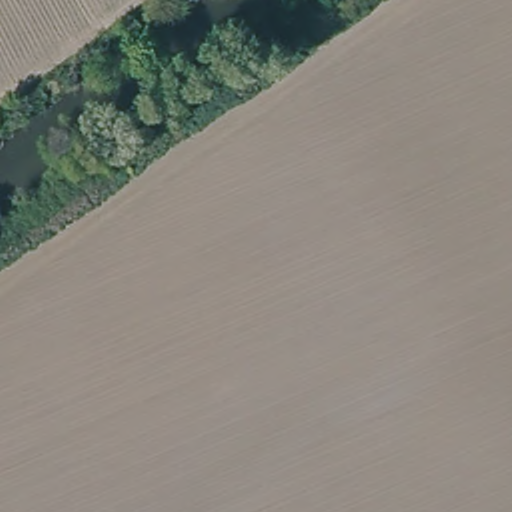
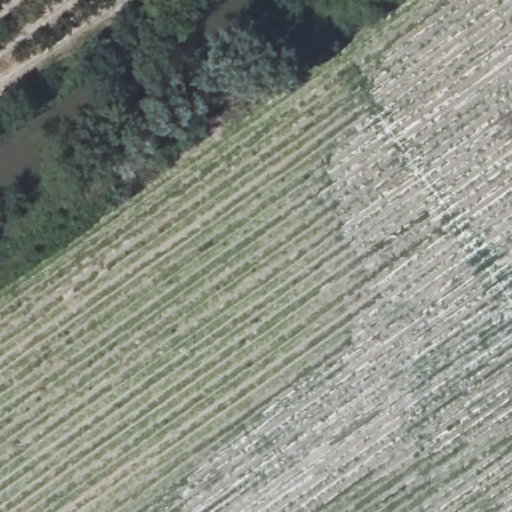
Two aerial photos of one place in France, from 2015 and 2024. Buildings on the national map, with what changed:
[]

